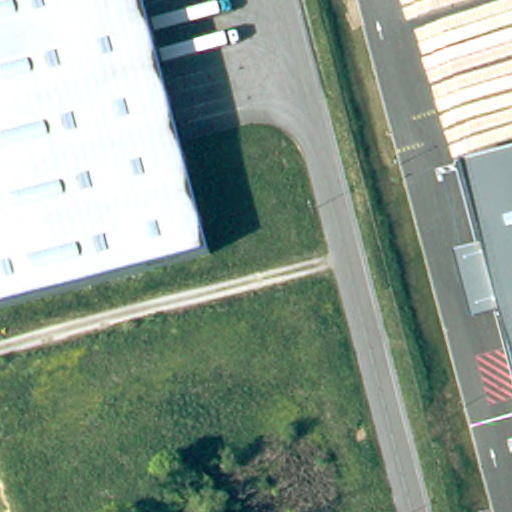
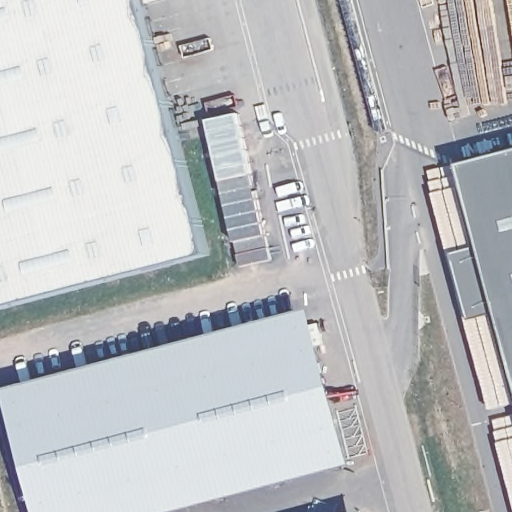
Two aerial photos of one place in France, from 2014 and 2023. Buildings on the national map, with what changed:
unchanged [(0,306),(0,0),(153,0),(218,250),(0,306)]
unchanged [(463,165),(512,152),(512,352),(463,165)]
new [(179,512),(37,512),(5,390),(312,308),(354,466),(179,512)]
new [(366,511),(366,512),(362,512),(366,511)]

